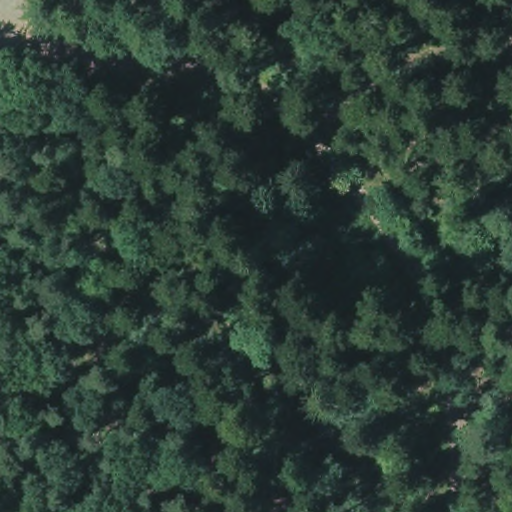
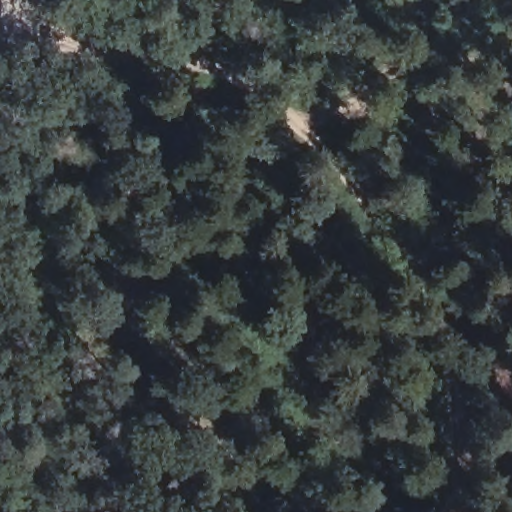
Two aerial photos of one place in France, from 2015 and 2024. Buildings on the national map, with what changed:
[]

